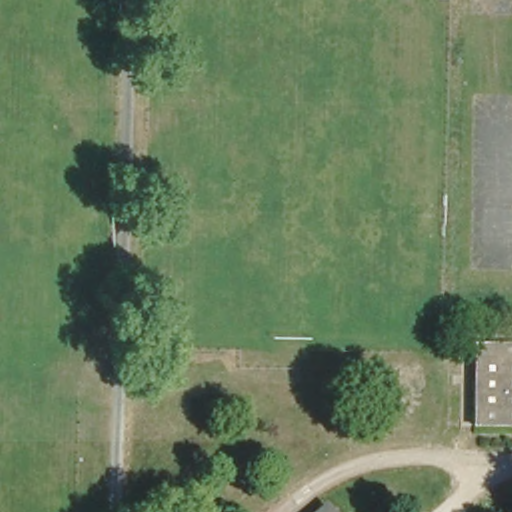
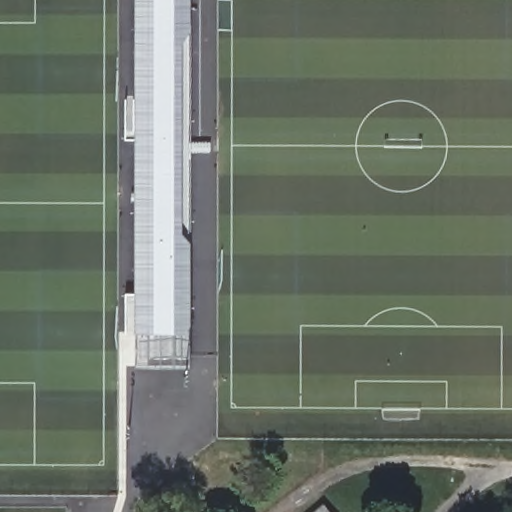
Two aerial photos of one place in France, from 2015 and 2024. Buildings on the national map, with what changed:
new [(186,368),(133,366),(133,0),(187,0),(186,368)]
demolished [(470,350),(512,351),(512,432),(468,431),(470,350)]
unchanged [(338,512),(314,512),(328,500),(338,512)]

